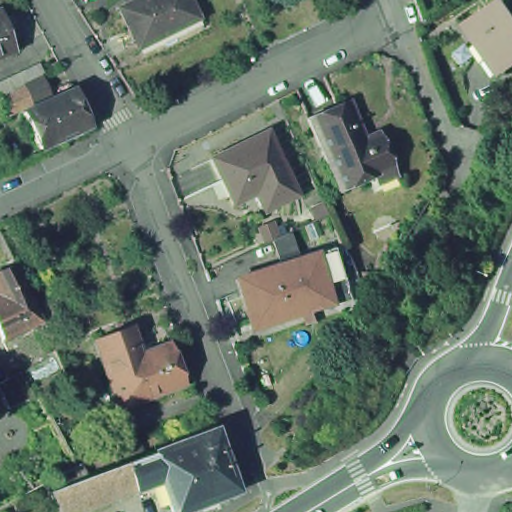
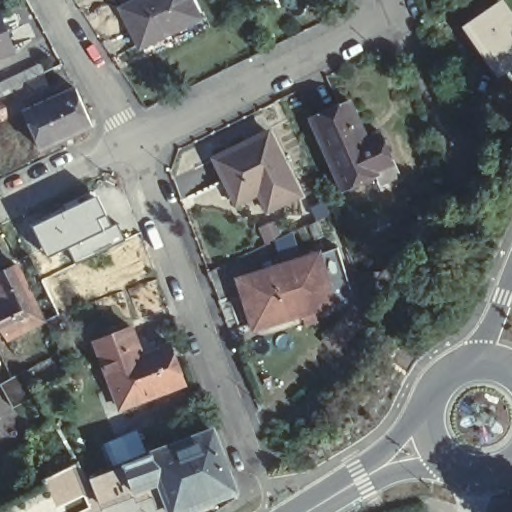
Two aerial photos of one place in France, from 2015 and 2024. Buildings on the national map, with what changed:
unchanged [(178,25),(180,29),(140,49),(121,9),(139,0),(191,0),(198,15),(178,25)]
unchanged [(19,51),(0,59),(0,14),(4,13),(19,51)]
unchanged [(512,25),(512,82),(505,87),(473,38),(506,16),(512,25)]
unchanged [(38,108),(36,104),(3,120),(0,113),(0,100),(1,100),(0,98),(0,84),(40,65),(45,75),(44,75),(55,100),(38,108)]
unchanged [(76,91),(92,126),(42,150),(25,114),(38,108),(55,100),(76,91)]
unchanged [(344,108),(360,144),(376,136),(396,181),(394,182),(388,169),(375,175),(378,181),(338,198),(305,126),(344,108)]
unchanged [(310,191),(279,207),(270,188),(247,200),(225,155),(279,128),(310,191)]
new [(125,238),(75,264),(67,248),(49,257),(33,226),(98,194),(115,224),(117,223),(125,238)]
unchanged [(358,299),(257,331),(242,280),(288,266),(280,241),(294,235),(303,262),(341,249),(358,299)]
unchanged [(43,322),(6,341),(0,329),(0,301),(2,301),(0,297),(0,295),(4,293),(0,287),(0,274),(18,266),(43,322)]
unchanged [(105,375),(94,348),(103,345),(131,334),(142,362),(171,350),(179,371),(177,372),(179,376),(182,378),(184,383),(183,387),(185,391),(128,413),(122,416),(105,375)]
unchanged [(59,355),(67,373),(36,389),(40,397),(15,409),(2,384),(59,355)]
unchanged [(189,512),(176,512),(165,482),(84,512),(61,512),(55,494),(219,432),(241,493),(189,512)]

